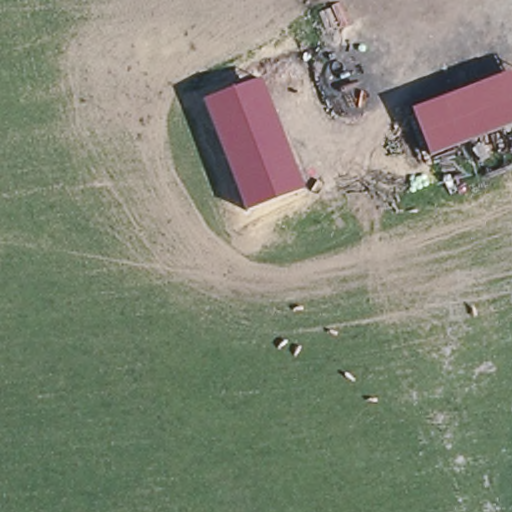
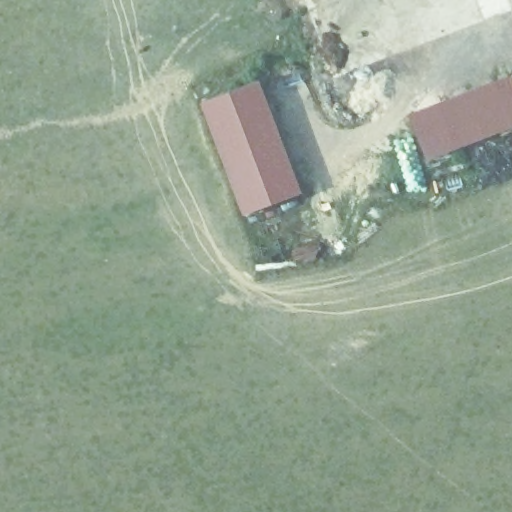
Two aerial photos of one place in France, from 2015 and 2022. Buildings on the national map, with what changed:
unchanged [(429,162),(409,111),(512,71),(512,130),(429,162)]
unchanged [(304,191),(244,214),(203,101),(262,80),(304,191)]

